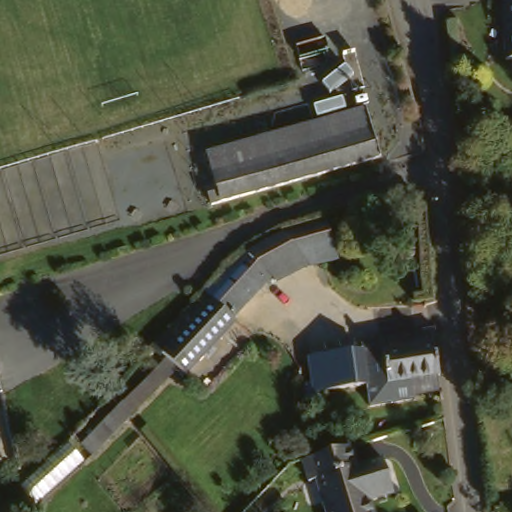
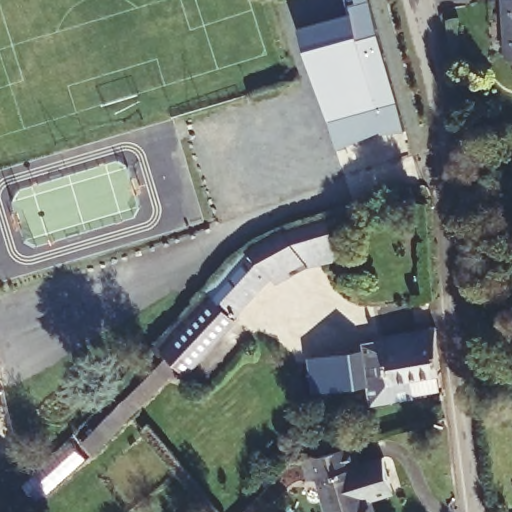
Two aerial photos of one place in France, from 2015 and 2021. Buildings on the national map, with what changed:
new [(381,134),(380,131),(337,149),(298,28),(348,14),(345,0),(369,0),(404,130),(381,134)]
unchanged [(507,0),(512,0),(512,61),(511,61),(507,0)]
demolished [(209,190),(220,187),(211,151),(372,110),(384,158),(211,202),(209,190)]
unchanged [(307,271),(282,292),(276,288),(234,327),(220,312),(210,302),(223,292),(218,287),(236,268),(251,252),(309,224),(320,220),(336,257),(307,271)]
unchanged [(234,327),(187,378),(180,372),(100,454),(88,442),(220,312),(234,327)]
unchanged [(367,395),(366,384),(357,385),(350,355),(363,354),(362,345),(386,343),(385,340),(442,335),(445,379),(445,396),(413,400),(368,405),(367,395)]
unchanged [(312,390),(310,360),(350,355),(357,385),(312,390)]
unchanged [(321,480),(308,483),(303,462),(372,445),(381,442),(386,461),(407,455),(413,482),(415,488),(416,495),(377,505),(379,512),(329,512),(321,480)]

